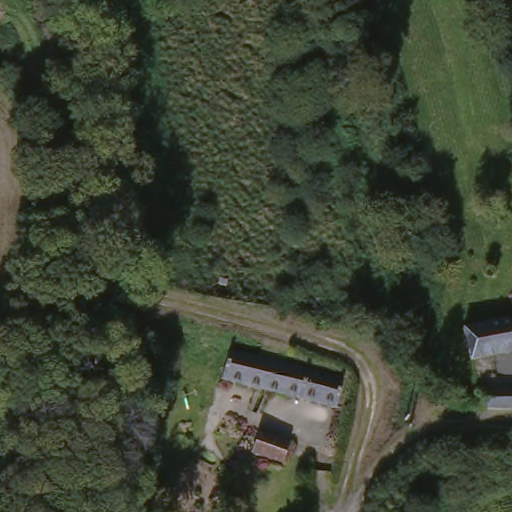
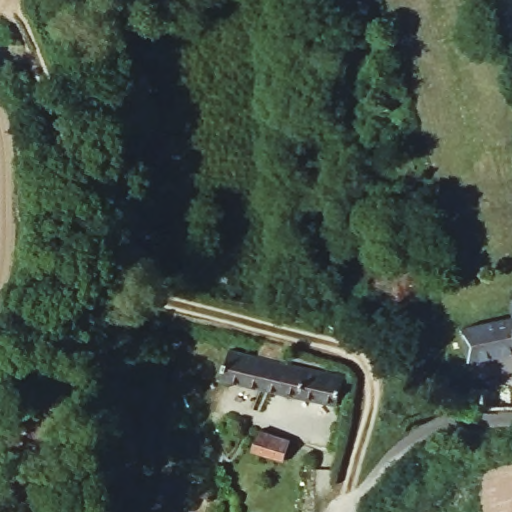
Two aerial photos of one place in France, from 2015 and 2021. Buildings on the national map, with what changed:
unchanged [(512,313),(512,345),(472,349),(468,318),(512,313)]
unchanged [(251,349),(264,352),(323,367),(313,401),(256,385),(242,381),(251,349)]
unchanged [(512,388),(512,408),(483,411),(481,390),(512,388)]
unchanged [(261,455),(251,452),(256,431),(266,435),(286,441),(281,461),(261,455)]

